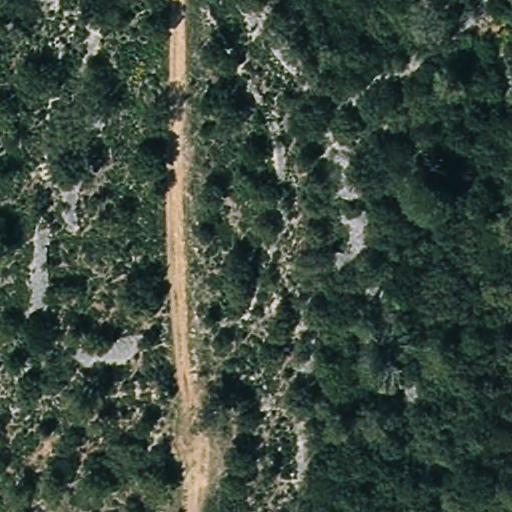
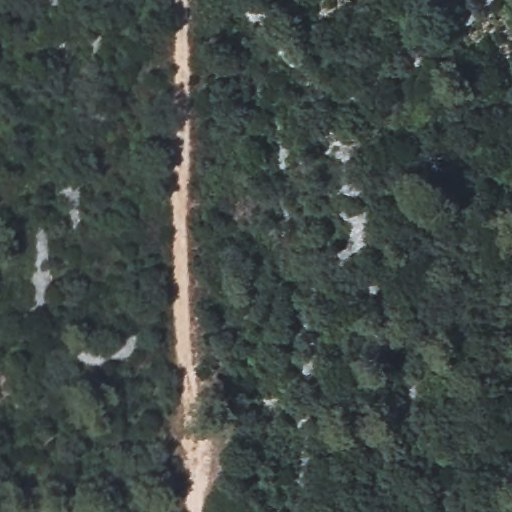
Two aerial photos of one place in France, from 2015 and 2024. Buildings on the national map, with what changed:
[]

